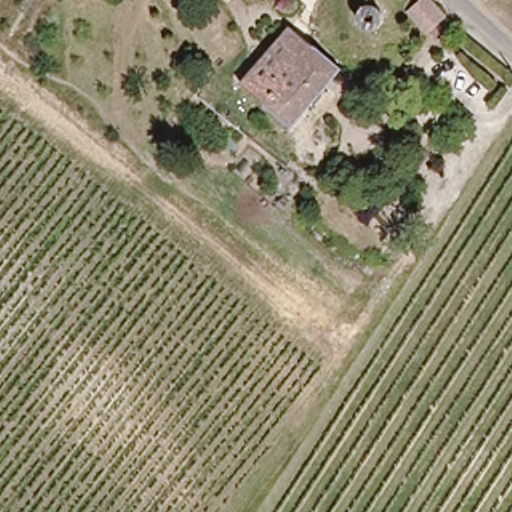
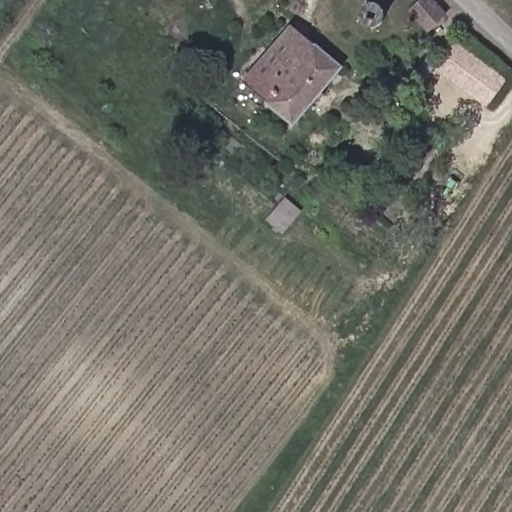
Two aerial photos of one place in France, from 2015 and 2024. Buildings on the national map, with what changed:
unchanged [(381,26),(377,29),(372,30),(367,30),(362,28),(358,25),(355,20),(354,15),(354,14),(355,10),(356,6),(357,5),(360,1),(362,0),(378,0),(380,1),(384,5),(386,9),(387,15),(386,19),(385,22),(381,26)]
unchanged [(444,11),(429,29),(411,12),(421,0),(431,0),(444,11)]
unchanged [(295,120),(292,119),(242,80),(289,22),(340,64),(295,120)]
new [(508,82),(487,109),(469,95),(462,105),(429,80),(456,43),(508,82)]

